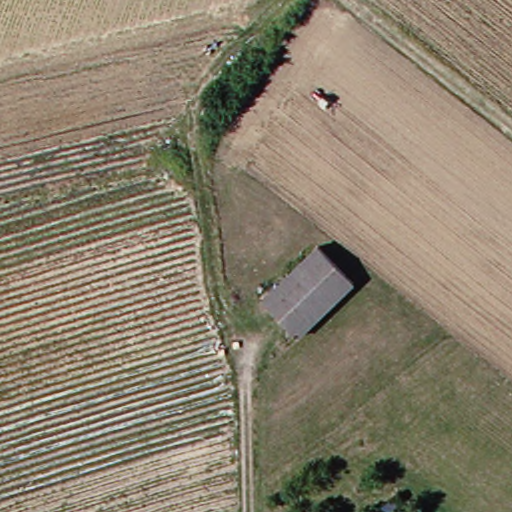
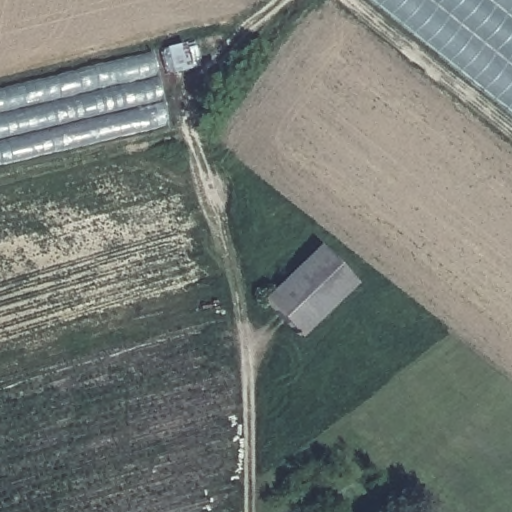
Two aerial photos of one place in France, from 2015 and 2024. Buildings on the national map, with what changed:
new [(512,115),(370,0),(512,0),(512,115)]
new [(150,50),(166,124),(0,164),(0,86),(150,50)]
unchanged [(296,336),(258,300),(313,247),(349,282),(296,336)]

